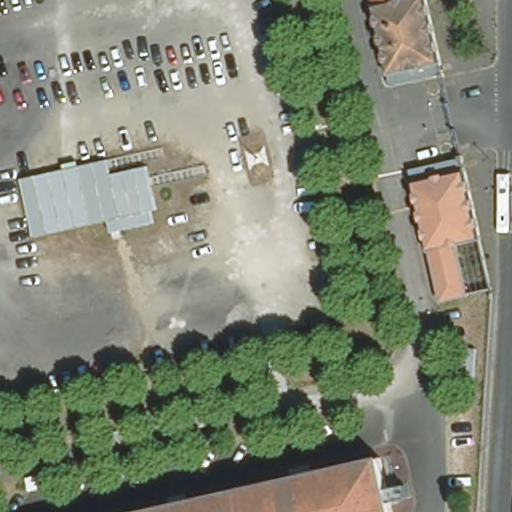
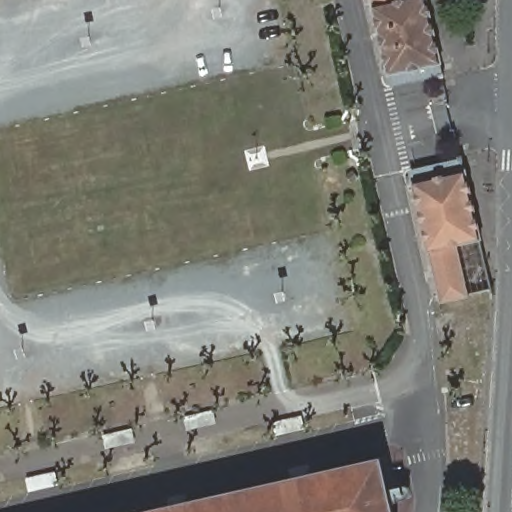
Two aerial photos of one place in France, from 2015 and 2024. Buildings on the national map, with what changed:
unchanged [(422,1),(436,62),(383,74),(367,5),(369,5),(368,0),(422,0),(422,1)]
demolished [(65,165),(79,161),(107,155),(111,168),(147,161),(157,204),(151,206),(155,218),(111,227),(108,216),(35,232),(21,175),(65,165)]
unchanged [(475,229),(476,233),(450,240),(462,291),(436,296),(425,245),(423,246),(407,177),(460,165),(475,229)]
unchanged [(387,487),(390,504),(392,512),(139,512),(380,458),(387,487)]

